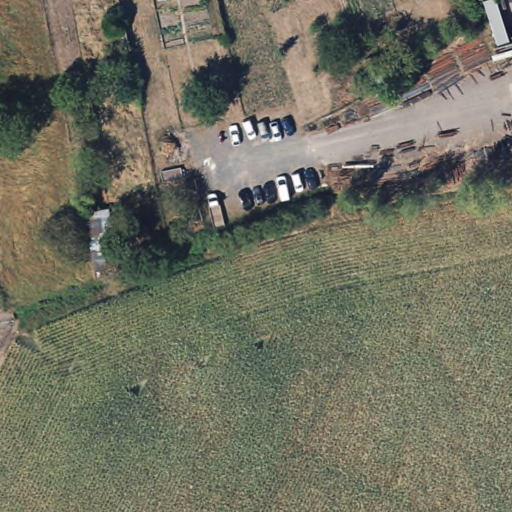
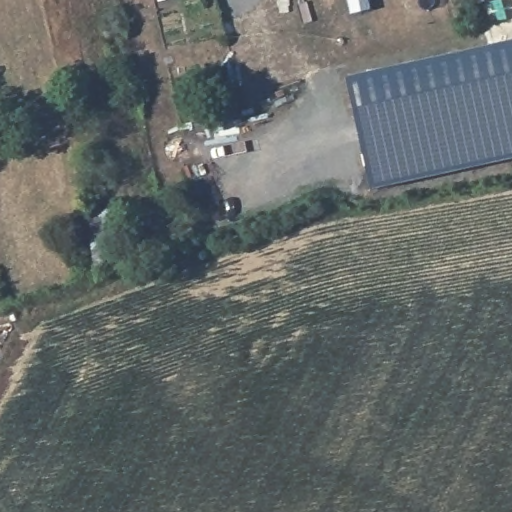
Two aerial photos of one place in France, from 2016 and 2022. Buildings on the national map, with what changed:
new [(512,37),(512,158),(373,187),(346,74),(512,37)]

